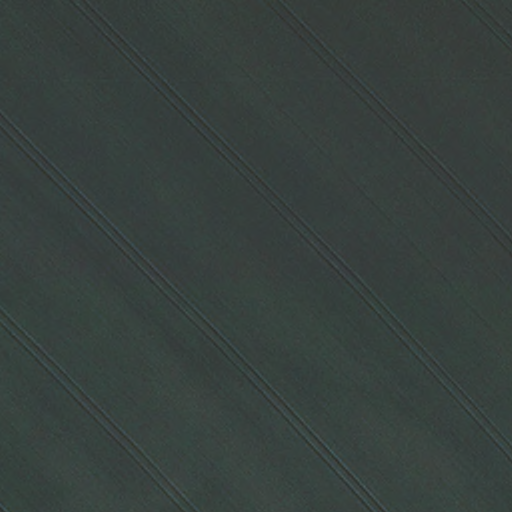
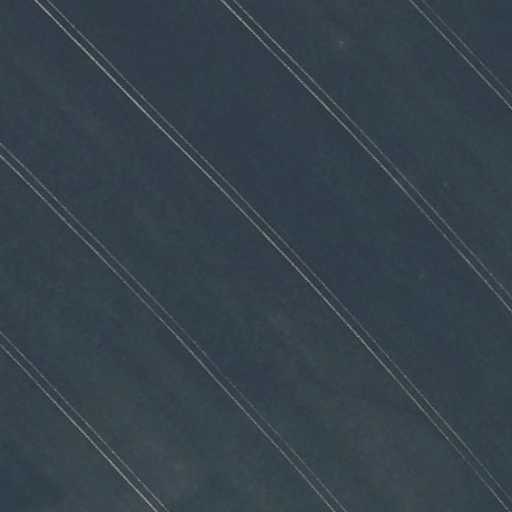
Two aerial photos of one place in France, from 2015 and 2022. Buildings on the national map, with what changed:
[]

